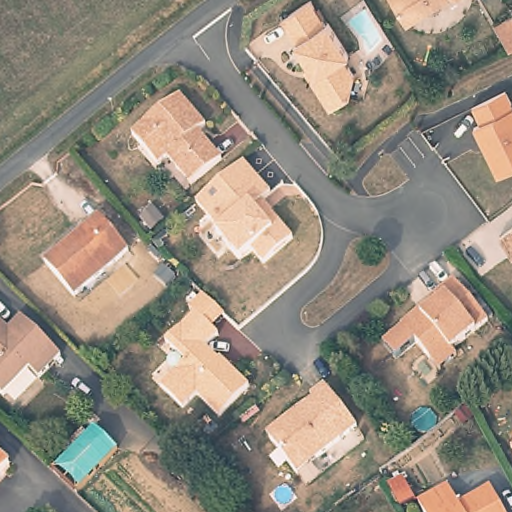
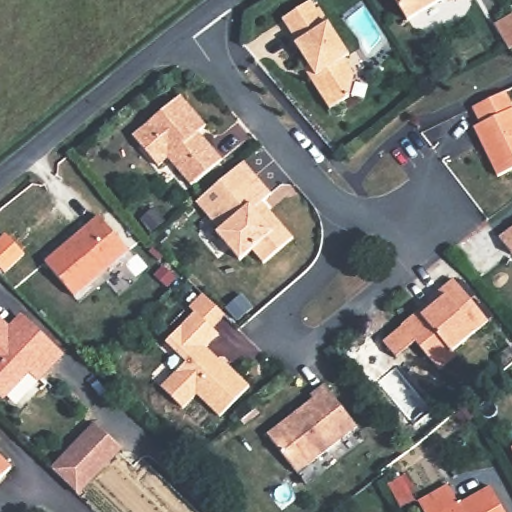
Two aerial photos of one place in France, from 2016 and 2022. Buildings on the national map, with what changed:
unchanged [(310,0),(325,22),(327,21),(347,51),(342,54),(352,70),(348,91),(329,104),(310,75),(316,72),(295,40),(297,39),(283,18),(310,0)]
unchanged [(395,0),(448,0),(411,24),(395,0)]
unchanged [(451,0),(459,0),(453,4),(451,0)]
unchanged [(500,22),(512,15),(512,40),(500,22)]
unchanged [(512,100),(512,171),(501,176),(478,127),(483,124),(475,108),(508,92),(512,100)]
unchanged [(181,99),(207,129),(200,135),(223,162),(193,187),(169,161),(161,169),(135,139),(181,99)]
unchanged [(242,262),(218,235),(222,232),(197,204),(234,172),(244,163),(272,195),(263,203),(270,211),(295,239),(266,264),(254,251),(242,262)]
unchanged [(101,218),(129,253),(75,298),(46,264),(101,218)]
unchanged [(512,226),(512,253),(499,236),(512,226)]
unchanged [(438,368),(429,358),(403,325),(431,301),(429,298),(453,279),(487,320),(450,350),(454,356),(438,368)]
unchanged [(167,342),(196,312),(191,306),(204,293),(226,315),(213,328),(220,334),(207,347),(226,367),(227,365),(250,387),(220,417),(190,387),(169,408),(155,394),(187,362),(167,342)]
unchanged [(21,318),(61,356),(38,380),(30,371),(5,397),(0,392),(0,321),(10,330),(21,318)]
unchanged [(292,418),(289,414),(313,395),(311,392),(324,382),(357,425),(297,470),(270,435),(292,418)]
new [(122,450),(77,495),(49,468),(92,422),(122,450)]
unchanged [(0,482),(0,459),(11,471),(0,482)]
unchanged [(418,497),(449,481),(460,501),(492,484),(507,512),(426,512),(418,497)]

